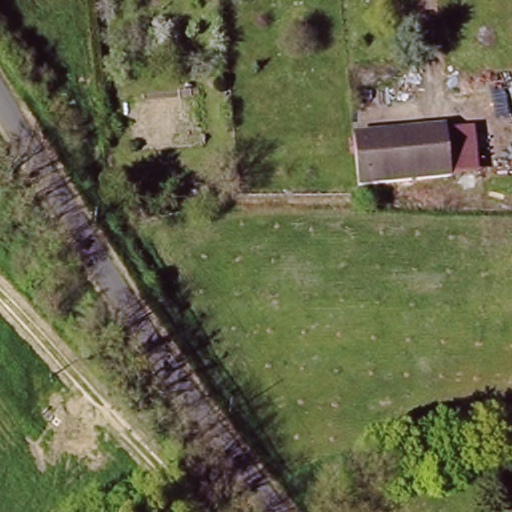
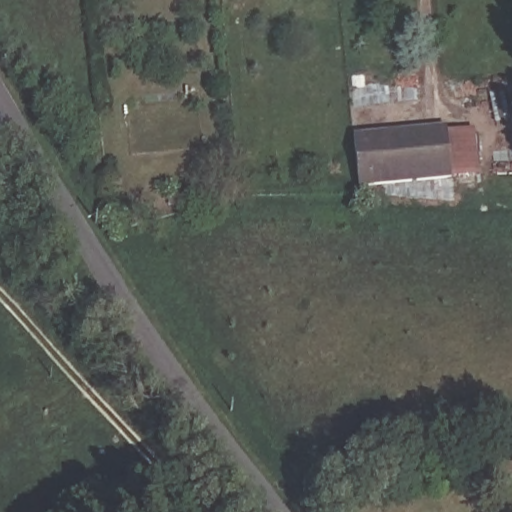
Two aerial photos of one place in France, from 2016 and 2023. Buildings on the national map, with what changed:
unchanged [(452,125),(452,129),(457,175),(366,185),(361,136),(452,125)]
unchanged [(477,127),(481,172),(457,175),(452,129),(477,127)]

